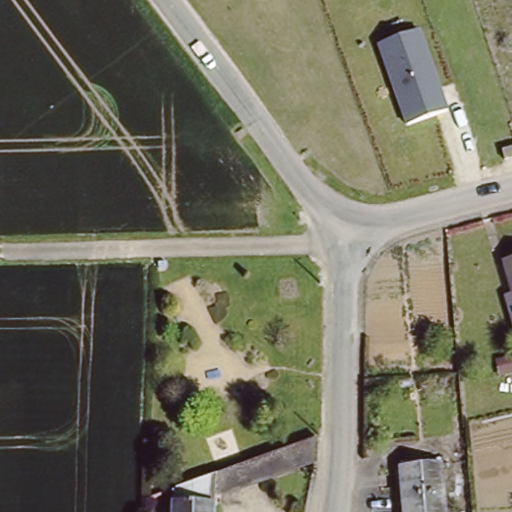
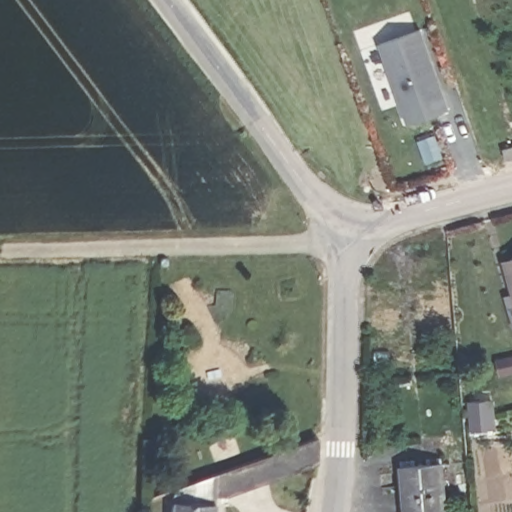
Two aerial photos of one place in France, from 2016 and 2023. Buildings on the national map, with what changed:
unchanged [(421,28),(449,108),(405,125),(377,44),(421,28)]
unchanged [(507,262),(512,261),(512,282),(507,262)]
unchanged [(508,298),(512,297),(512,315),(508,298)]
unchanged [(171,487),(322,434),(317,466),(218,504),(218,512),(172,512),(171,487)]
unchanged [(402,467),(442,463),(447,512),(406,512),(402,467)]

